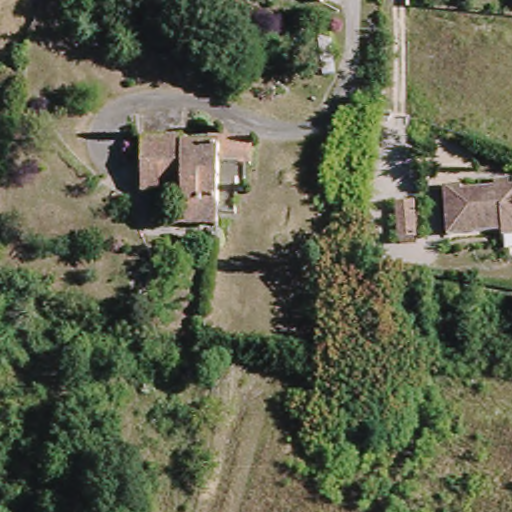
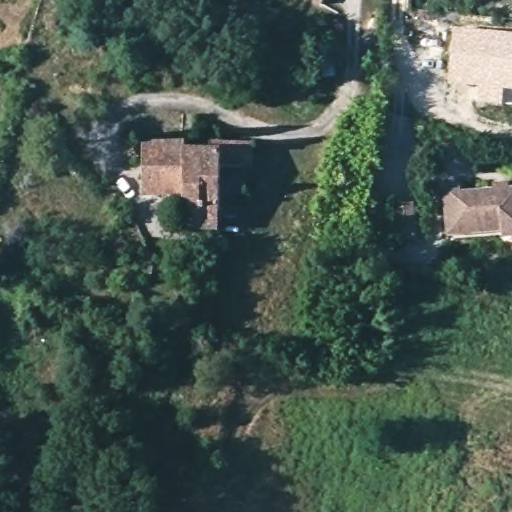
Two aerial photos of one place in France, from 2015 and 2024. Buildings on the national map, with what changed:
unchanged [(300,0),(324,0),(320,9),(300,0)]
new [(512,33),(512,90),(503,90),(502,105),(477,103),(477,87),(447,83),(454,28),(512,33)]
unchanged [(199,234),(183,234),(182,202),(147,201),(149,153),(192,155),(191,163),(210,163),(210,149),(251,149),(251,177),(248,180),(247,201),(240,202),(241,222),(222,222),(222,234),(199,234)]
unchanged [(462,192),(462,198),(494,197),(492,187),(509,187),(510,197),(512,196),(512,245),(499,246),(498,237),(445,238),(443,193),(462,192)]
unchanged [(400,243),(399,208),(415,207),(415,244),(400,243)]

